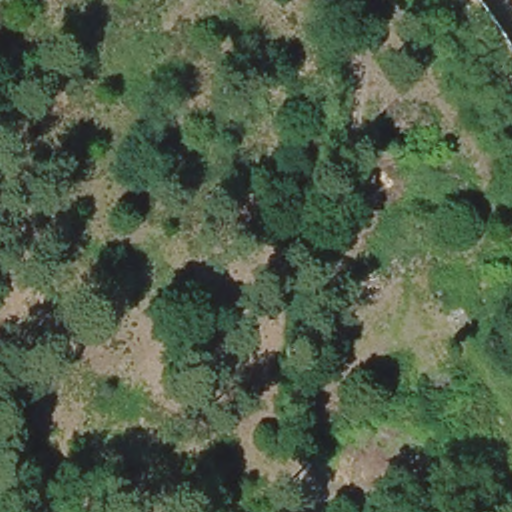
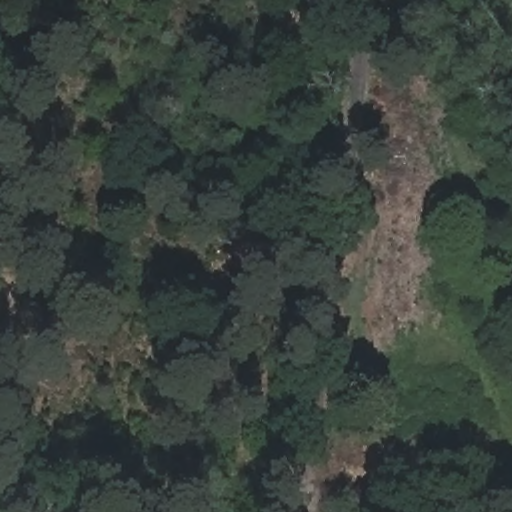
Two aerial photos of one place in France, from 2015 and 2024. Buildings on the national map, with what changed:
[]

